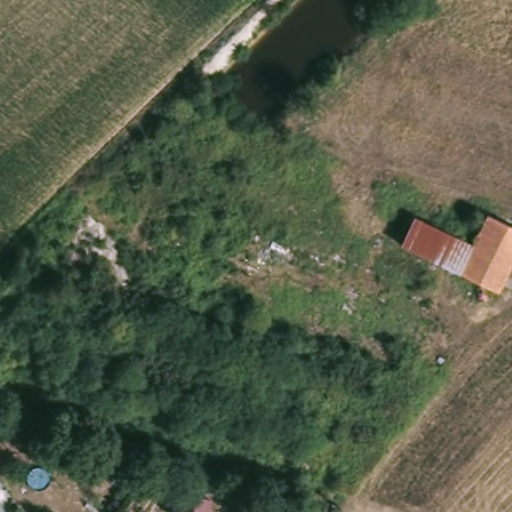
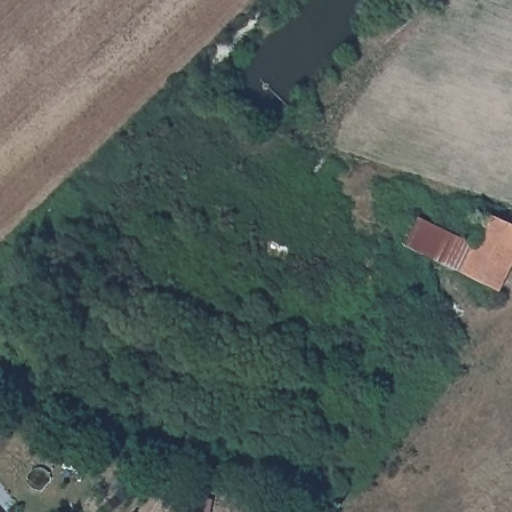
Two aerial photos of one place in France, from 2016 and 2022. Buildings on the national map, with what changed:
unchanged [(512,227),(512,263),(499,292),(460,273),(488,215),(512,227)]

